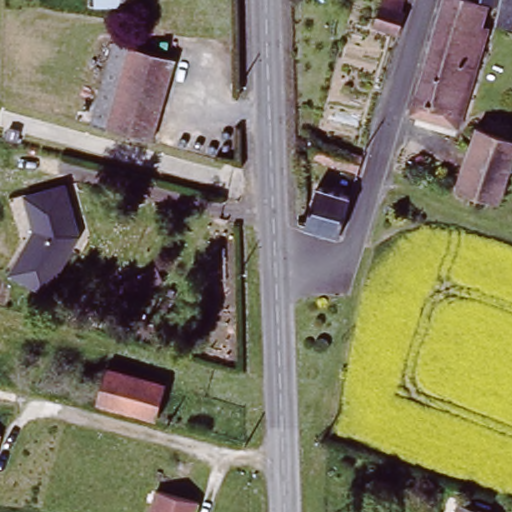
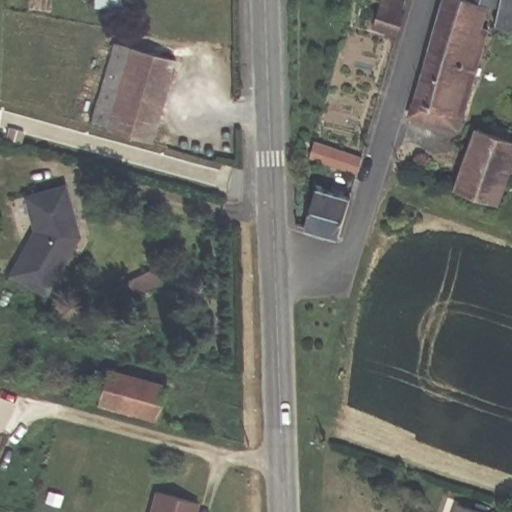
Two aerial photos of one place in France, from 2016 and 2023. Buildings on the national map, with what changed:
unchanged [(122,3),(98,3),(98,0),(122,0),(122,3)]
unchanged [(408,2),(405,13),(409,14),(402,37),(377,30),(385,0),(386,0),(404,0),(408,2)]
unchanged [(490,5),(484,27),(491,30),(467,115),(457,113),(453,125),(413,113),(438,23),(446,0),(475,0),(490,5)]
unchanged [(502,9),(490,5),(475,0),(503,0),(502,9)]
unchanged [(502,9),(503,0),(512,0),(512,30),(500,26),(502,9)]
unchanged [(132,45),(109,130),(92,125),(115,41),(132,45)]
unchanged [(178,57),(155,143),(109,130),(132,45),(178,57)]
unchanged [(495,122),(512,128),(512,177),(503,204),(460,189),(479,127),(492,131),(495,122)]
unchanged [(365,155),(361,171),(317,157),(322,140),(365,155)]
unchanged [(76,232),(42,291),(5,271),(30,227),(21,192),(61,181),(76,232)]
unchanged [(354,196),(342,235),(311,226),(322,186),(354,196)]
unchanged [(115,364),(169,379),(158,412),(103,397),(115,364)]
unchanged [(3,434),(2,440),(0,445),(0,433),(3,434)]
unchanged [(202,503),(199,512),(154,512),(160,491),(202,503)]
unchanged [(498,512),(458,512),(462,499),(498,512)]

